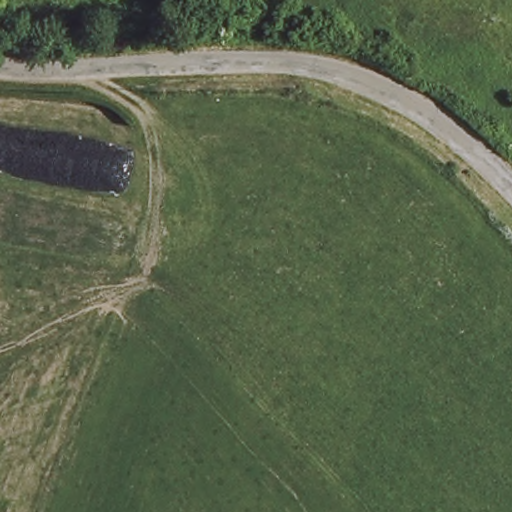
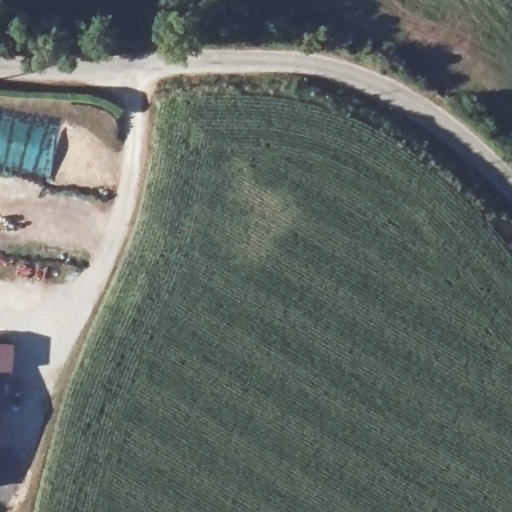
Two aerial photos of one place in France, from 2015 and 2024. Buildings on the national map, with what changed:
new [(11,372),(0,372),(0,342),(13,343),(11,372)]

